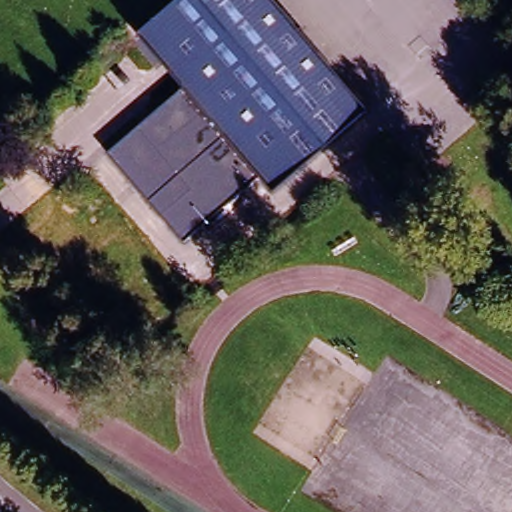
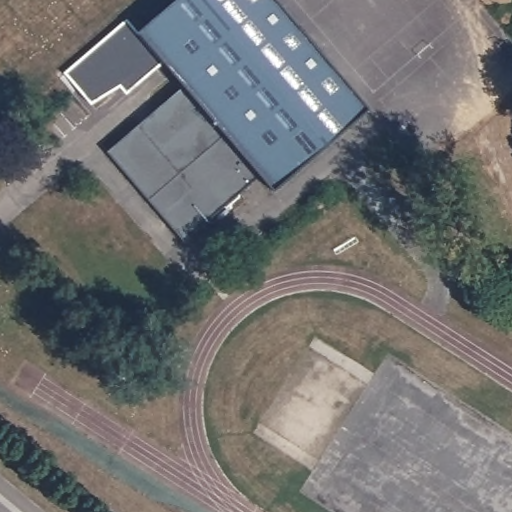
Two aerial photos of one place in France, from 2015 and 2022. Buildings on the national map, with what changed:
unchanged [(260,168),(187,232),(114,150),(187,84),(143,33),(181,0),(275,0),(366,105),(276,188),(260,168)]
new [(127,95),(121,87),(92,106),(65,74),(127,20),(139,32),(138,34),(164,64),(127,95)]

